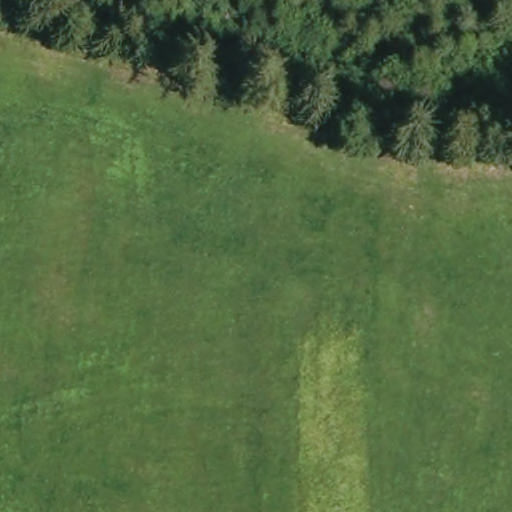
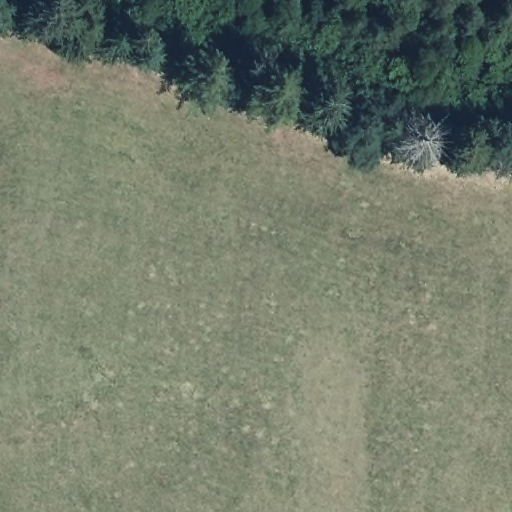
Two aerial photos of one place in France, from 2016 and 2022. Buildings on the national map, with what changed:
[]

